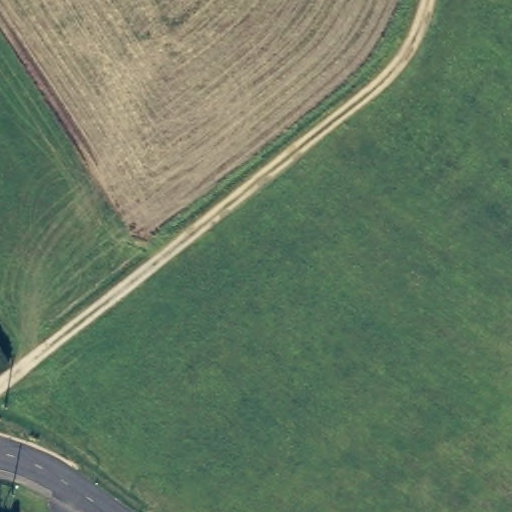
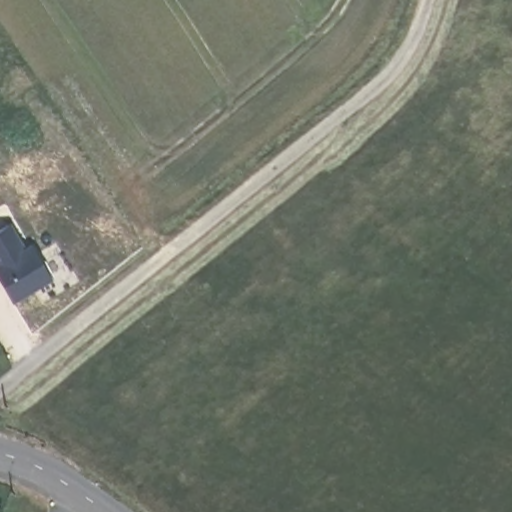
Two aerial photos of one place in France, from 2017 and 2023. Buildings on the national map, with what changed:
new [(14,303),(0,280),(0,231),(12,224),(26,248),(31,244),(53,280),(14,303)]

